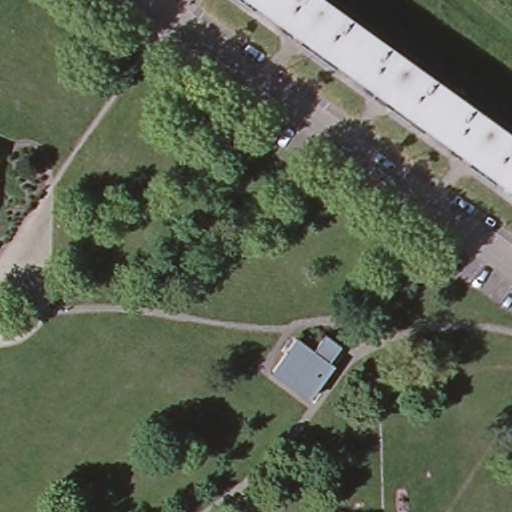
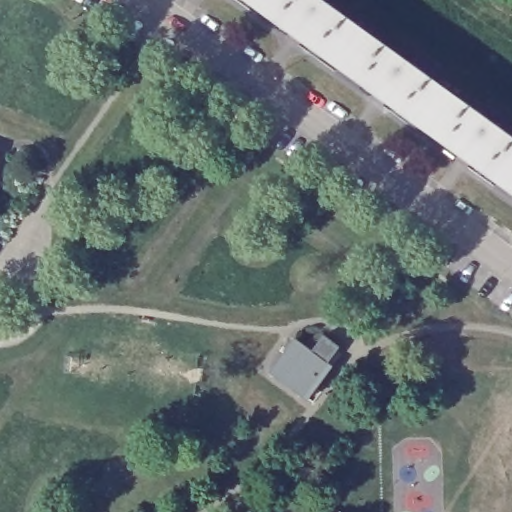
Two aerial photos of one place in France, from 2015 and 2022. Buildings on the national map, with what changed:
unchanged [(358,23),(332,59),(250,0),(326,0),(358,23)]
unchanged [(358,23),(442,84),(417,120),(332,59),(358,23)]
unchanged [(512,134),(512,167),(502,181),(417,120),(442,84),(512,134)]
unchanged [(512,189),(502,181),(512,167),(512,189)]
unchanged [(307,398),(269,371),(293,338),(309,350),(322,333),(339,345),(327,362),(332,366),(307,398)]

